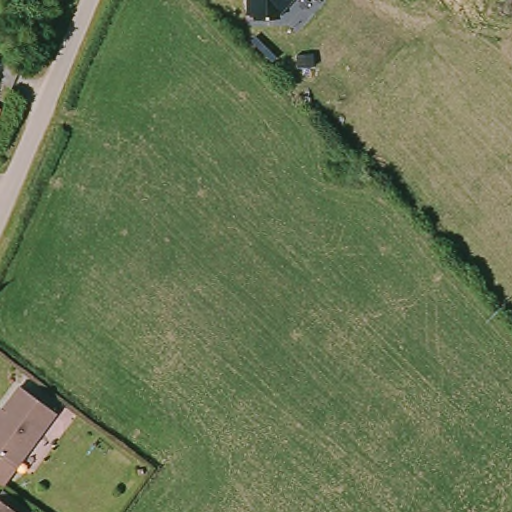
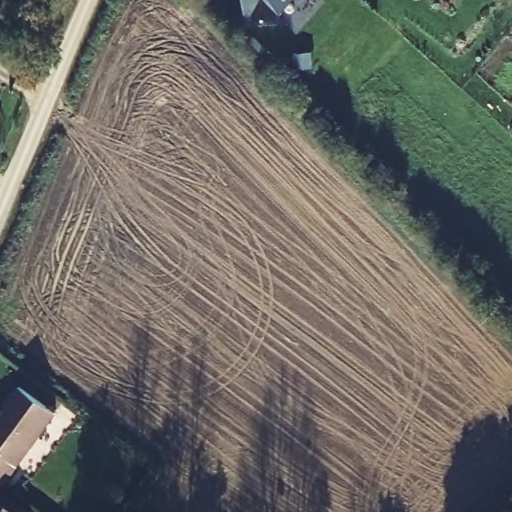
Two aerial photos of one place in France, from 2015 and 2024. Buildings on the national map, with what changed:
unchanged [(278,23),(250,26),(250,13),(242,14),(242,0),(289,0),(277,14),(278,23)]
unchanged [(19,384),(52,405),(21,457),(0,445),(0,414),(19,384)]
unchanged [(14,512),(0,512),(0,503),(14,512)]

